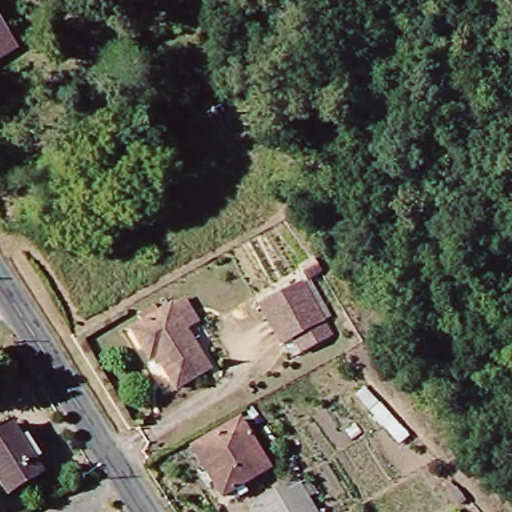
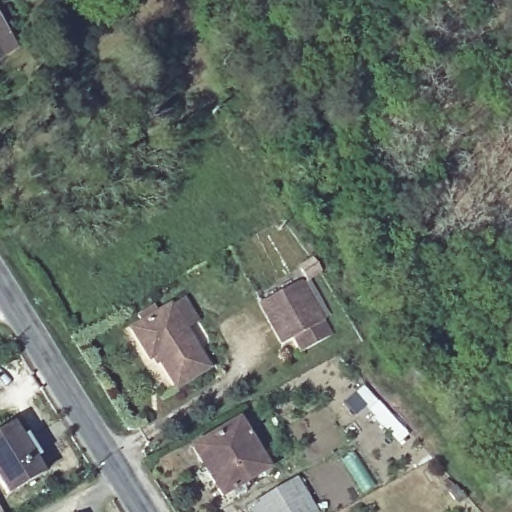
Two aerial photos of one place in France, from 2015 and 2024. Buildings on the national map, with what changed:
unchanged [(0,55),(0,25),(13,47),(0,55)]
unchanged [(291,266),(301,261),(309,273),(299,280),(291,266)]
unchanged [(279,345),(256,304),(293,283),(323,338),(297,352),(290,339),(279,345)]
unchanged [(147,342),(141,346),(126,322),(167,298),(204,361),(170,381),(147,342)]
unchanged [(216,494),(186,446),(233,417),(263,464),(216,494)]
unchanged [(0,483),(0,433),(14,424),(24,439),(27,436),(39,455),(35,457),(44,472),(8,495),(0,483)]
unchanged [(248,504),(275,489),(278,493),(296,485),(309,510),(305,512),(252,512),(248,504)]

